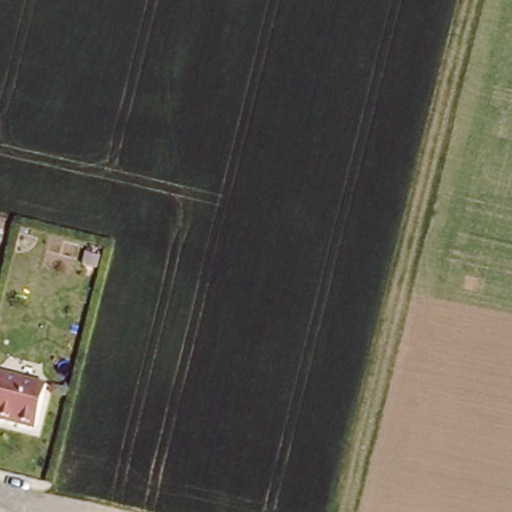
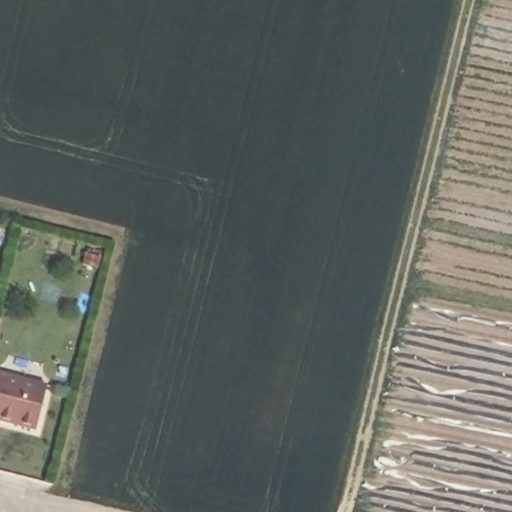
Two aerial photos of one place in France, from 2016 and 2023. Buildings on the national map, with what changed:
unchanged [(40,429),(0,419),(0,373),(50,386),(40,429)]

